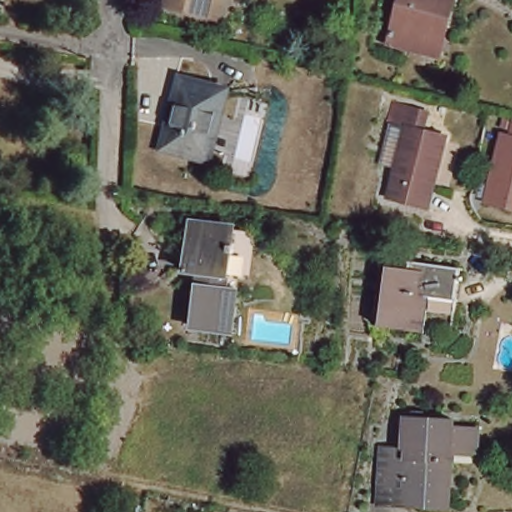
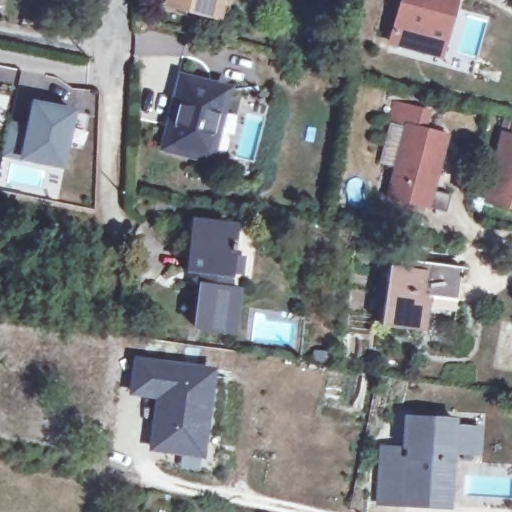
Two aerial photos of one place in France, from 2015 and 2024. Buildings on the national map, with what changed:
unchanged [(218,21),(167,9),(169,0),(224,0),(218,21)]
unchanged [(395,42),(407,0),(462,0),(455,25),(445,56),(437,54),(395,42)]
unchanged [(170,124),(175,126),(182,100),(177,98),(182,79),(227,90),(209,157),(165,146),(170,124)]
unchanged [(401,168),(387,165),(399,121),(396,120),(401,102),(434,111),(430,130),(452,135),(434,207),(393,196),(401,168)]
new [(2,154),(8,124),(28,128),(34,104),(72,111),(61,166),(2,154)]
unchanged [(510,135),(512,124),(512,212),(483,205),(500,132),(510,135)]
unchanged [(224,280),(220,279),(218,292),(234,294),(230,335),(190,332),(195,290),(197,290),(197,276),(182,275),(187,236),(187,226),(207,229),(229,231),(224,280)]
unchanged [(405,273),(407,266),(420,268),(455,272),(452,304),(419,300),(417,315),(424,315),(422,335),(377,330),(385,270),(405,273)]
new [(165,363),(164,368),(212,375),(202,455),(152,447),(159,395),(132,391),(137,360),(165,363)]
unchanged [(444,509),(411,507),(384,505),(385,480),(387,446),(409,447),(411,416),(458,418),(458,426),(483,428),(482,449),(457,448),(454,495),(453,510),(444,509)]

